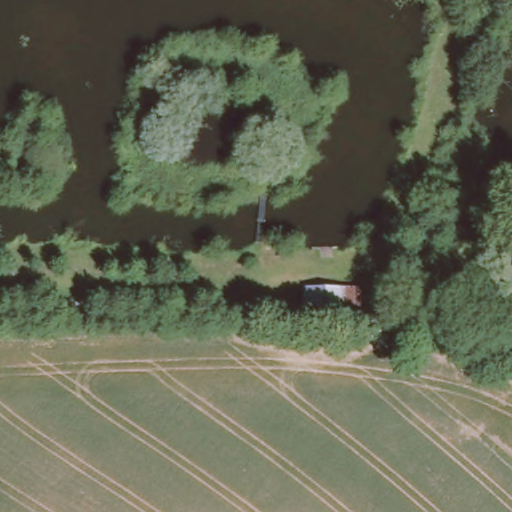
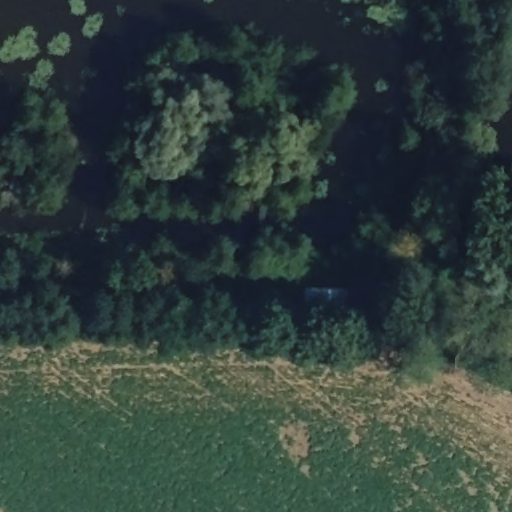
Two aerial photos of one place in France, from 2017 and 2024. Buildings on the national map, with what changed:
unchanged [(360,308),(307,310),(306,302),(306,291),(328,289),(359,289),(360,308)]

